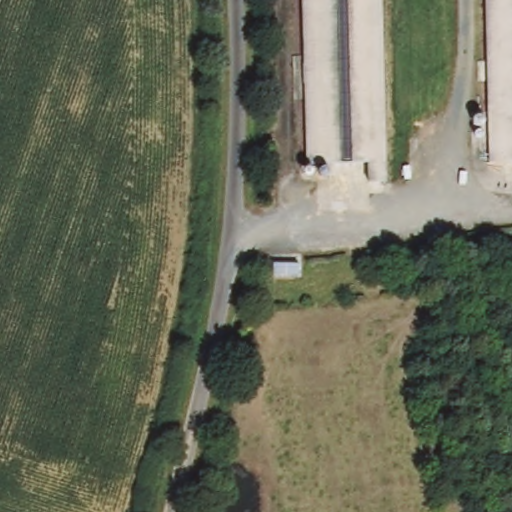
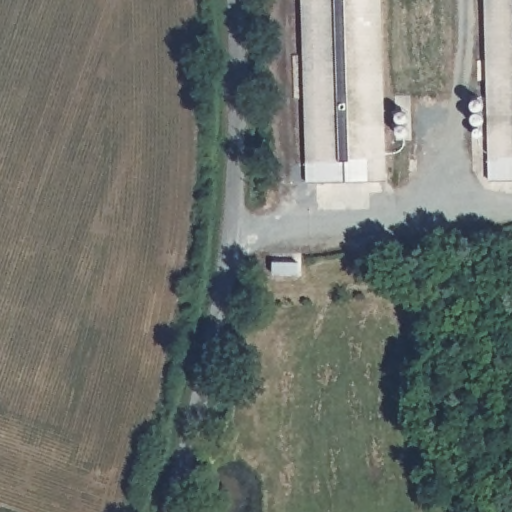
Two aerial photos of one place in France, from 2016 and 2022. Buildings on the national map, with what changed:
unchanged [(389,88),(391,180),(375,181),(374,160),(310,162),(308,62),(306,0),(386,0),(389,88)]
unchanged [(496,164),(493,20),(492,0),(512,0),(512,164),(496,164)]

